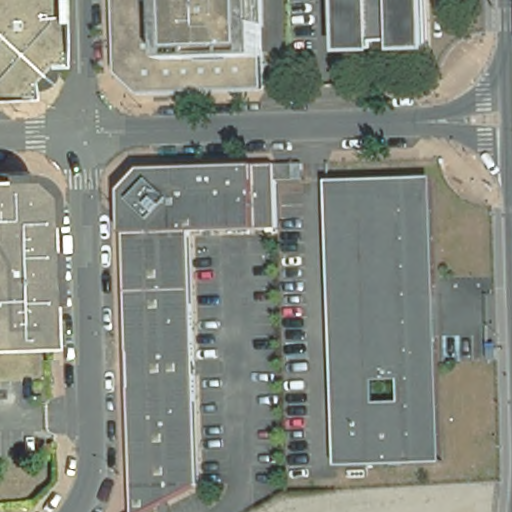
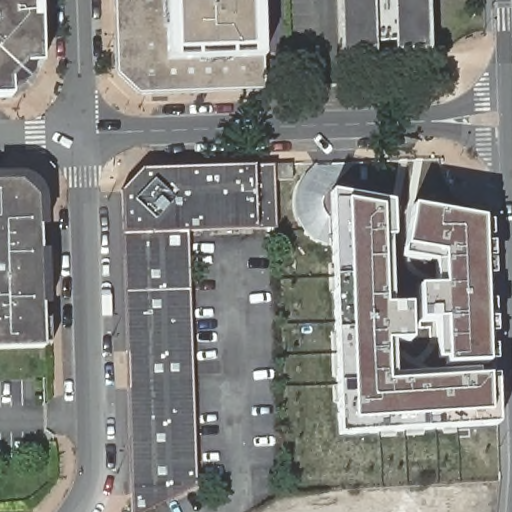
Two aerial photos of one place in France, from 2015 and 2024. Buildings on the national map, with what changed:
unchanged [(25,71),(11,87),(11,103),(0,103),(0,0),(40,0),(40,7),(42,71),(25,71)]
unchanged [(265,95),(139,99),(117,78),(114,0),(260,0),(265,95)]
unchanged [(431,39),(400,40),(399,33),(380,34),(380,41),(348,42),(347,0),(430,0),(431,39)]
unchanged [(130,330),(126,186),(146,164),(210,162),(280,159),(280,176),(281,194),(281,209),(282,224),(194,227),(202,481),(179,494),(145,512),(136,512),(136,496),(135,475),(135,448),(135,447),(132,384),(132,371),(131,346),(130,330)]
unchanged [(24,178),(46,198),(47,229),(40,229),(41,257),(48,257),(50,308),(42,308),(43,323),(50,323),(51,350),(44,350),(44,352),(0,354),(0,178),(24,178)]
demolished [(335,183),(426,180),(430,289),(424,290),(425,331),(431,331),(436,459),(345,461),(335,183)]
new [(497,425),(340,433),(330,191),(391,202),(392,237),(387,237),(388,306),(410,306),(410,341),(391,342),(392,375),(477,371),(476,377),(487,376),(496,376),(497,425)]
new [(487,360),(488,364),(445,365),(445,357),(438,357),(435,321),(418,322),(417,286),(433,286),(433,261),(401,255),(405,248),(411,206),(481,220),(491,222),(492,238),(483,237),(482,245),(491,244),(492,276),(485,276),(486,303),(493,302),(495,319),(495,335),(487,335),(487,346),(495,346),(497,361),(487,360)]
demolished [(496,348),(496,359),(487,360),(487,348),(496,348)]

